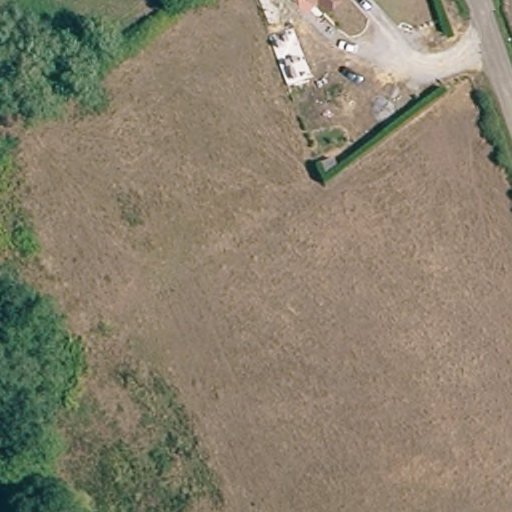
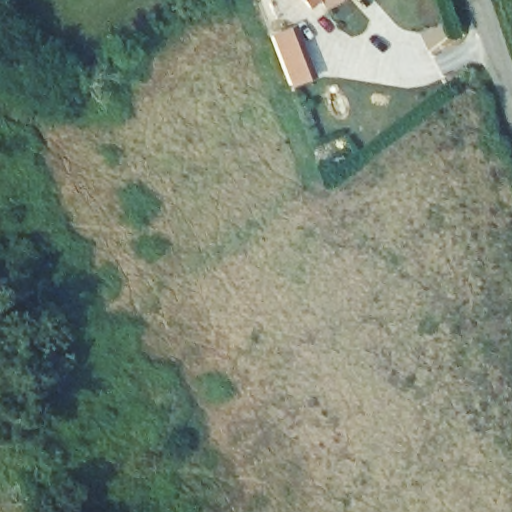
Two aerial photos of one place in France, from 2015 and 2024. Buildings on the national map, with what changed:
unchanged [(324,6),(319,0),(331,0),(324,6)]
new [(269,35),(294,26),(314,79),(289,88),(269,35)]

